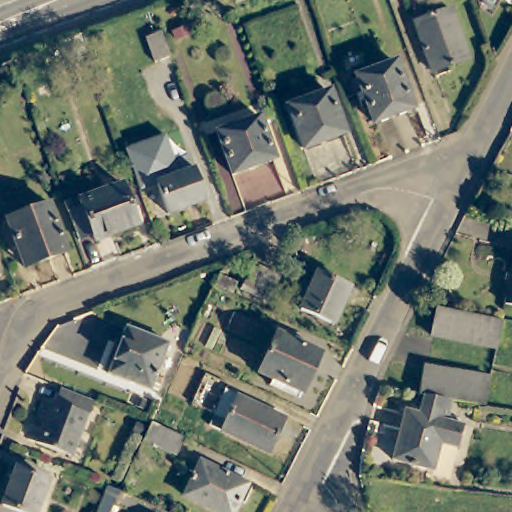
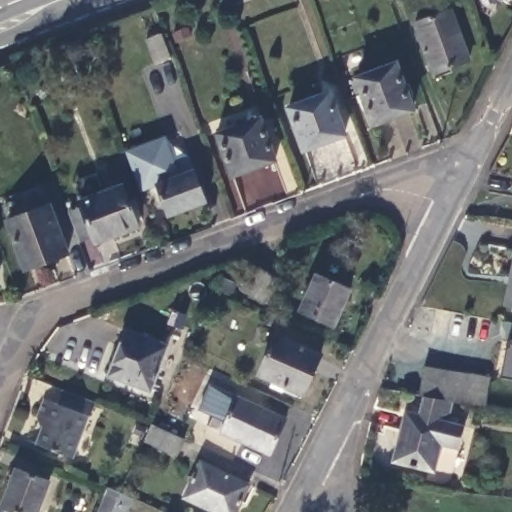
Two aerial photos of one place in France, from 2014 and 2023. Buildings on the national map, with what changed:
unchanged [(413,22),(449,10),(467,59),(432,72),(413,22)]
unchanged [(155,63),(146,39),(162,32),(171,57),(155,63)]
unchanged [(354,78),(393,63),(412,111),(372,126),(354,78)]
unchanged [(301,151),(286,108),(326,94),(341,137),(301,151)]
unchanged [(272,161),(232,176),(217,132),(257,118),(272,161)]
unchanged [(158,185),(141,191),(126,150),(166,136),(175,160),(189,155),(206,201),(169,215),(158,185)]
unchanged [(137,225),(96,242),(80,200),(122,184),(137,225)]
unchanged [(24,269),(7,222),(50,205),(67,252),(24,269)]
unchanged [(512,248),(512,305),(503,303),(512,248)]
unchanged [(249,265),(277,277),(266,304),(238,292),(249,265)]
unchanged [(334,323),(300,308),(316,272),(350,288),(334,323)]
unchanged [(219,275),(236,282),(231,294),(214,286),(219,275)]
unchanged [(495,347),(430,335),(436,306),(502,320),(495,347)]
unchanged [(150,390),(108,374),(125,329),(168,345),(150,390)]
unchanged [(304,391),(253,369),(270,331),(320,354),(304,391)]
unchanged [(428,367),(494,376),(489,405),(470,402),(451,400),(425,395),(422,395),(428,367)]
unchanged [(32,446),(41,423),(32,419),(38,402),(51,407),(56,392),(91,406),(70,461),(32,446)]
unchanged [(215,430),(231,394),(291,422),(274,457),(215,430)]
unchanged [(445,421),(464,426),(457,450),(439,445),(432,471),(391,460),(404,410),(421,415),(425,395),(451,400),(445,421)]
unchanged [(177,455),(145,440),(153,422),(185,436),(177,455)]
unchanged [(184,495),(199,460),(248,482),(235,512),(221,512),(184,495)]
unchanged [(3,504),(17,468),(51,480),(39,512),(25,512),(3,504)]
unchanged [(109,487),(121,492),(112,512),(98,512),(109,487)]

